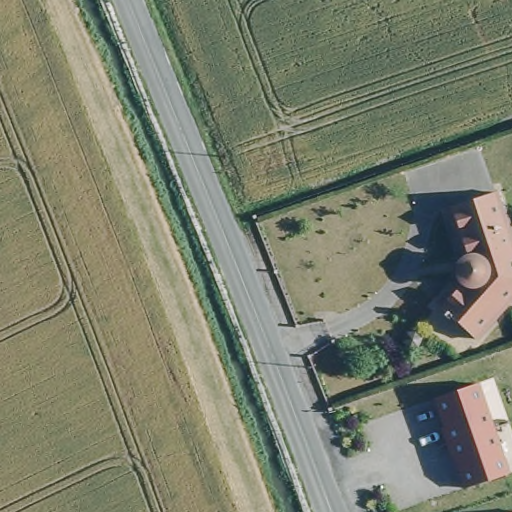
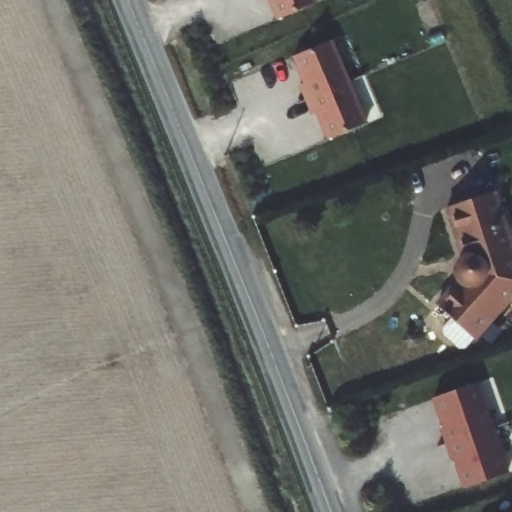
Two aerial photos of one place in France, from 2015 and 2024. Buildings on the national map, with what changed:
new [(315,4),(278,20),(270,0),(313,0),(315,4)]
new [(332,41),(367,124),(329,140),(317,114),(313,115),(300,85),(304,83),(294,56),(332,41)]
unchanged [(462,240),(450,202),(499,186),(511,222),(462,240)]
unchanged [(512,227),(512,293),(478,332),(455,312),(452,315),(445,309),(446,306),(439,299),(460,275),(456,269),(458,256),(466,250),(462,240),(511,222),(512,227)]
unchanged [(509,474),(466,487),(457,458),(454,458),(444,426),(447,426),(437,396),(480,383),(509,474)]

